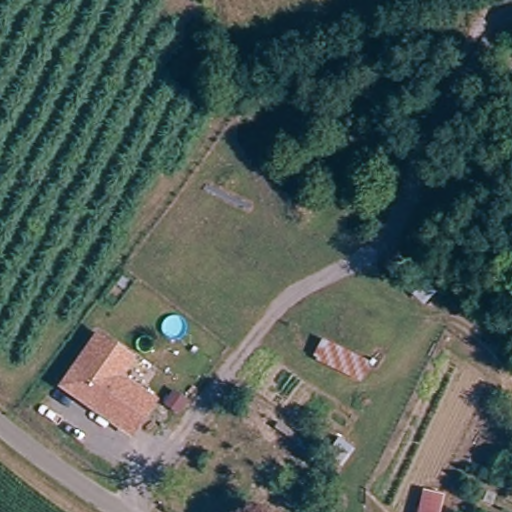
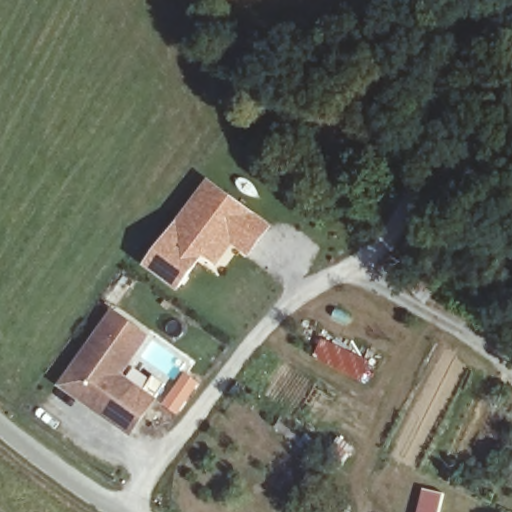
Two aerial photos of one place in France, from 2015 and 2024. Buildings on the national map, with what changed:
new [(272,226),(250,259),(232,246),(217,267),(204,258),(181,290),(145,265),(207,180),(272,226)]
unchanged [(117,315),(150,337),(121,380),(157,404),(135,437),(66,391),(117,315)]
unchanged [(364,383),(313,357),(325,337),(372,360),(364,383)]
unchanged [(445,493),(441,512),(422,512),(426,490),(445,493)]

